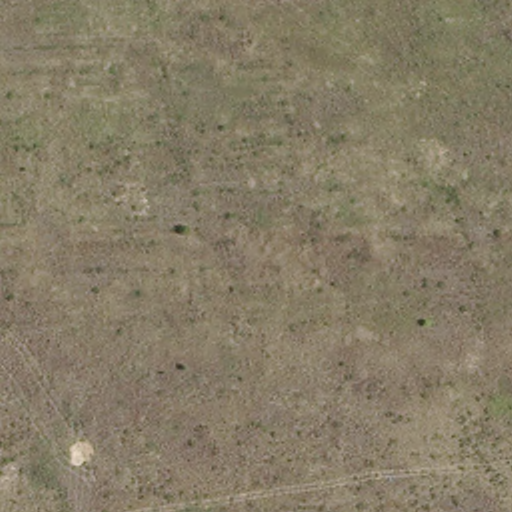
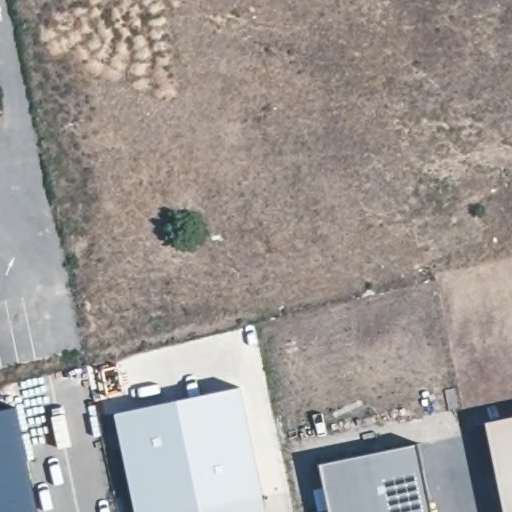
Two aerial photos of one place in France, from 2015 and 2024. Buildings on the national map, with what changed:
new [(187,512),(137,512),(116,414),(240,388),(263,496),(187,512)]
new [(18,408),(40,512),(0,512),(0,412),(18,408)]
new [(512,512),(506,512),(485,420),(512,414),(512,512)]
new [(319,462),(417,441),(432,512),(329,512),(319,462)]
new [(263,496),(266,512),(187,512),(263,496)]

